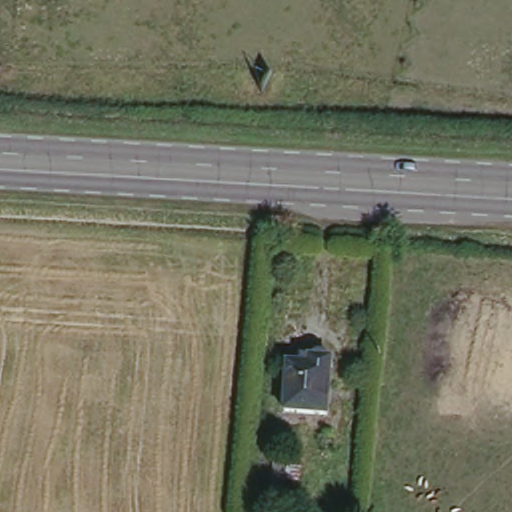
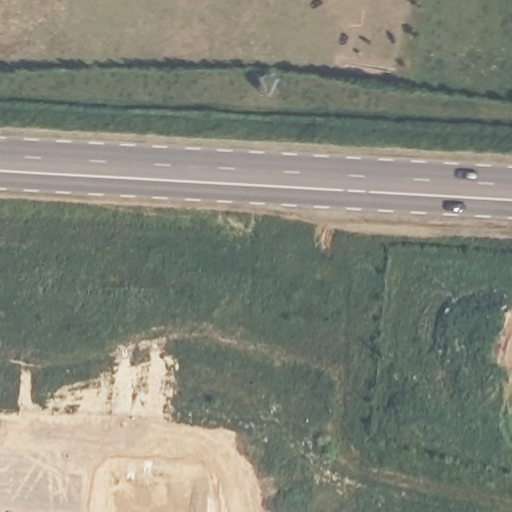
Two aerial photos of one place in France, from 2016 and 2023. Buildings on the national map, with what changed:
demolished [(332,363),(329,417),(285,414),(289,359),(332,363)]

